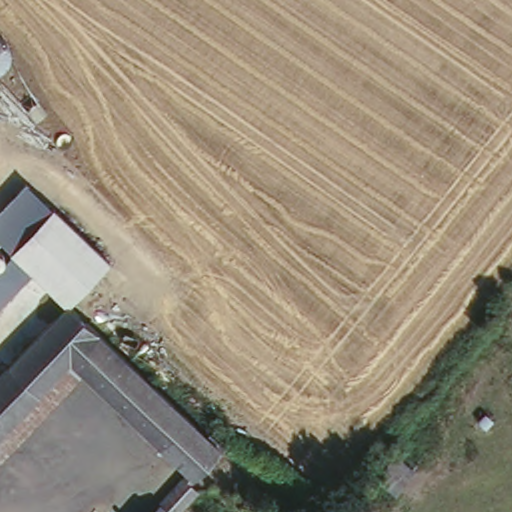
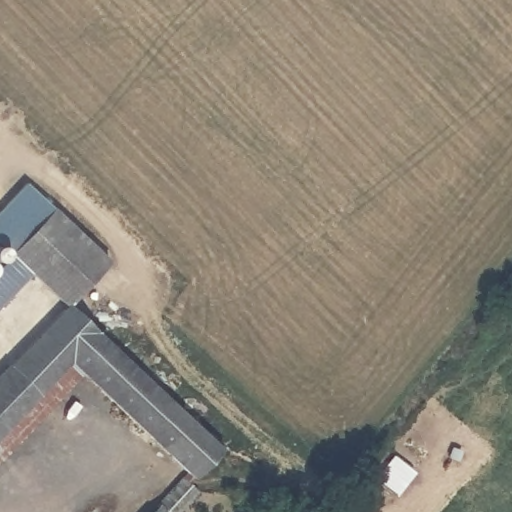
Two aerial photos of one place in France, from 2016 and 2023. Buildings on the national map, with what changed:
unchanged [(0,208),(21,184),(45,204),(5,250),(0,245),(0,208)]
unchanged [(102,252),(62,298),(5,250),(45,204),(102,252)]
unchanged [(211,421),(227,438),(185,482),(181,477),(186,471),(72,357),(0,431),(0,370),(26,343),(70,299),(117,345),(202,429),(211,421)]
unchanged [(170,512),(152,512),(160,503),(170,512)]

